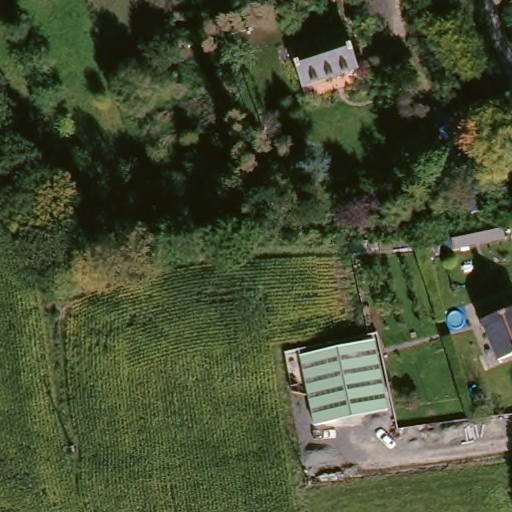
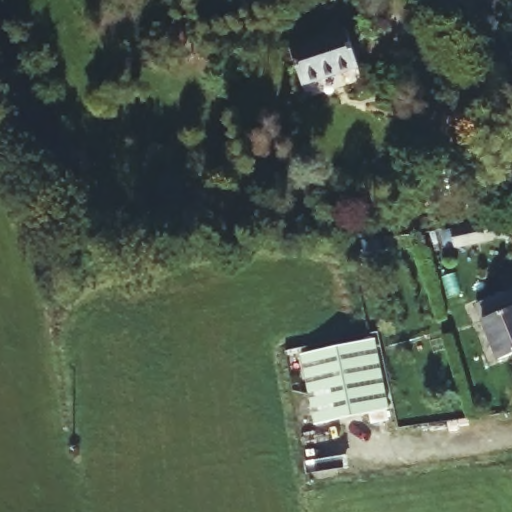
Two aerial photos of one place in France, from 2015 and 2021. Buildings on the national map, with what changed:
unchanged [(344,17),(360,67),(308,82),(293,32),(344,17)]
unchanged [(510,233),(460,246),(456,227),(505,213),(510,233)]
unchanged [(512,295),(512,346),(497,352),(479,308),(512,295)]
unchanged [(372,348),(386,426),(312,440),(297,363),(372,348)]

